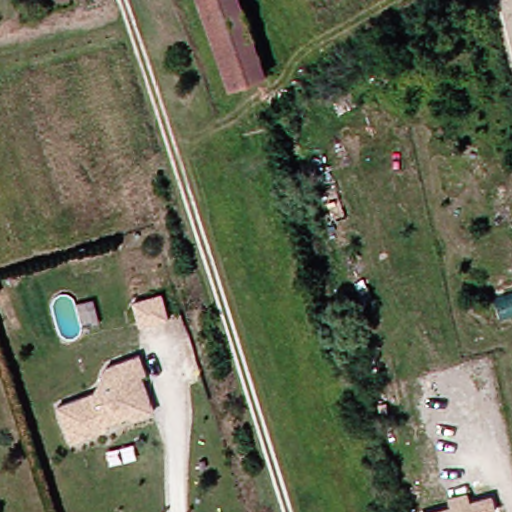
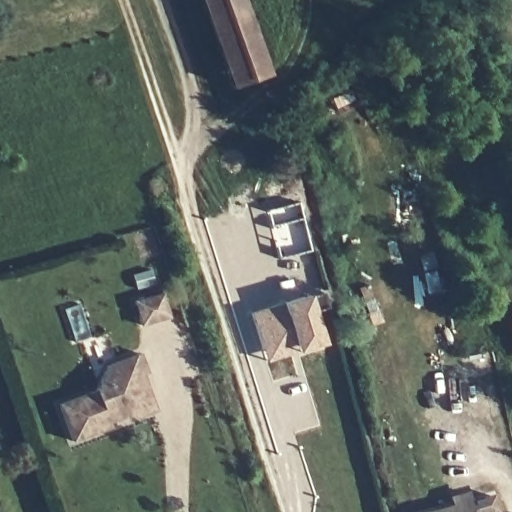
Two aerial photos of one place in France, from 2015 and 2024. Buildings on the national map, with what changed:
unchanged [(233,87),(203,0),(246,0),(273,76),(233,87)]
new [(310,251),(280,258),(266,210),(298,202),(310,251)]
unchanged [(157,294),(165,317),(137,327),(129,303),(157,294)]
new [(307,296),(321,342),(264,362),(249,313),(307,296)]
new [(512,320),(512,324),(511,320),(512,320)]
unchanged [(125,426),(123,422),(103,428),(104,433),(66,446),(54,409),(92,396),(104,372),(137,360),(143,379),(139,381),(147,405),(151,417),(125,426)]
unchanged [(449,509),(447,501),(463,497),(465,505),(488,500),(491,512),(437,512),(449,509)]

